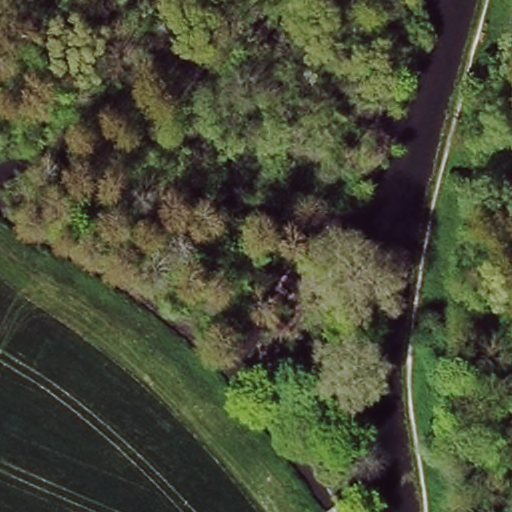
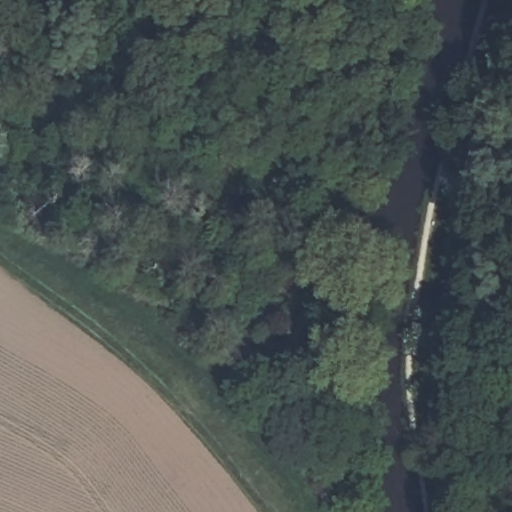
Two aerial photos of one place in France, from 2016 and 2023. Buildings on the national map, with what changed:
unchanged [(355,505),(348,512),(340,512),(329,500),(340,489),(355,505)]

